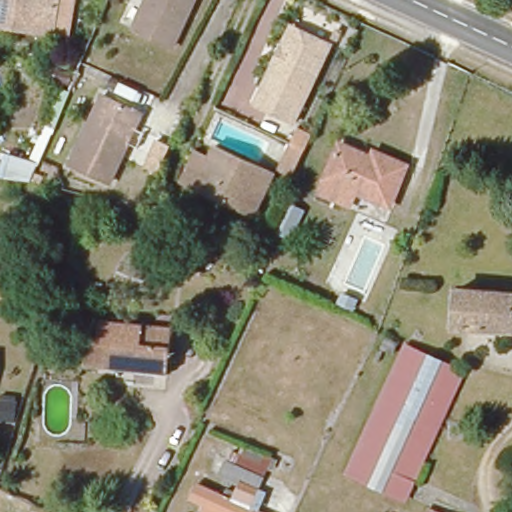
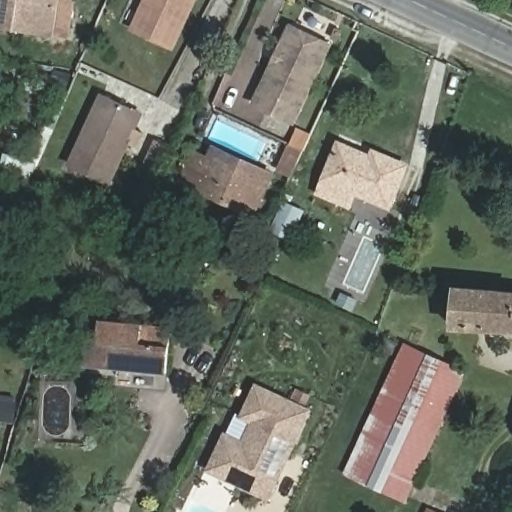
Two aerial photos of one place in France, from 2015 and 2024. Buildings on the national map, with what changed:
unchanged [(68,35),(52,33),(0,25),(0,0),(73,0),(68,35)]
unchanged [(172,52),(134,33),(149,0),(196,0),(196,1),(172,52)]
unchanged [(265,89),(261,87),(289,26),(295,24),(330,40),(294,119),(259,103),(265,89)]
unchanged [(69,72),(69,83),(51,82),(52,70),(69,72)]
unchanged [(103,96),(141,114),(110,181),(71,164),(103,96)]
unchanged [(297,124),(311,131),(305,146),(290,139),(297,124)]
unchanged [(254,213),(183,181),(196,153),(201,142),(243,161),(272,174),(254,213)]
unchanged [(339,149),(371,162),(374,157),(407,171),(390,212),(355,197),(349,211),(319,198),(324,186),(339,149)]
unchanged [(30,162),(27,182),(3,179),(5,159),(30,162)]
unchanged [(271,232),(284,201),(305,210),(291,240),(271,232)]
unchanged [(457,297),(451,297),(451,289),(458,290),(458,289),(512,294),(512,331),(454,329),(457,297)]
unchanged [(144,324),(172,327),(171,346),(168,374),(86,366),(89,337),(99,337),(100,320),(144,324)]
unchanged [(393,358),(383,354),(387,343),(397,348),(393,358)]
unchanged [(406,351),(463,377),(436,438),(405,505),(348,478),(406,351)]
new [(255,382),(313,409),(269,501),(205,471),(224,430),(242,439),(250,423),(238,417),(255,382)]
demolished [(221,475),(227,462),(262,478),(256,491),(221,475)]

